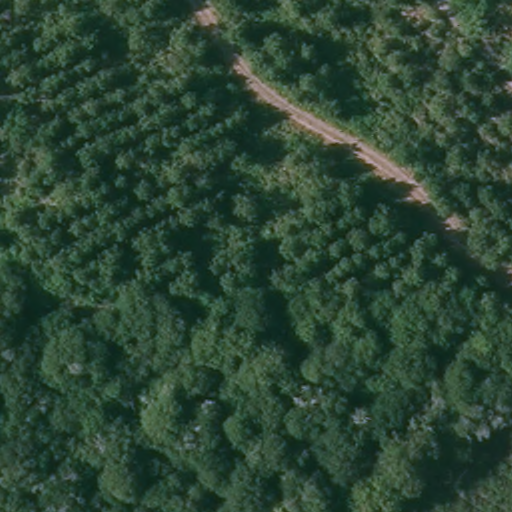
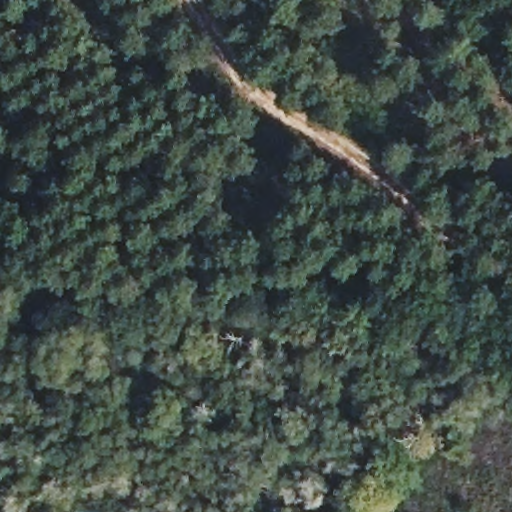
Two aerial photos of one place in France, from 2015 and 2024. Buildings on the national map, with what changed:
unchanged [(24,212),(0,190),(0,189),(25,164),(48,186),(24,212)]

